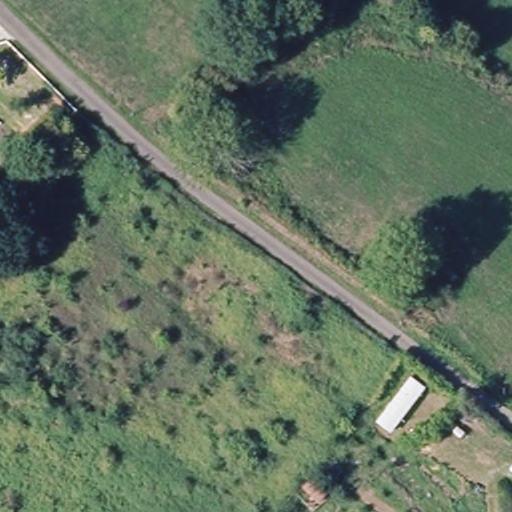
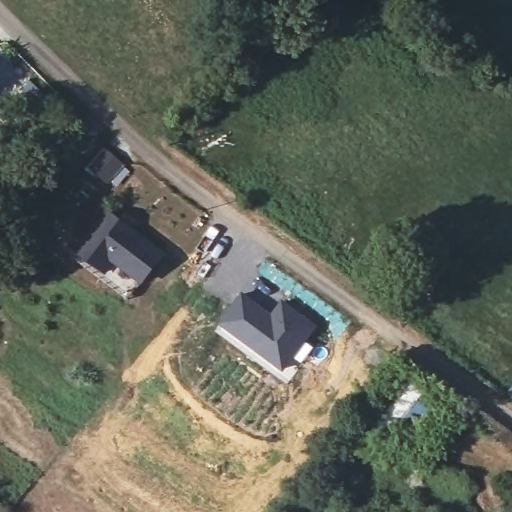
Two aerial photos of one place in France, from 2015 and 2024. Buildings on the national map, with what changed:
new [(100,269),(76,250),(107,210),(162,253),(140,282),(112,260),(104,272),(100,269)]
new [(242,290),(246,292),(253,285),(278,301),(281,298),(318,325),(292,369),(290,367),(283,374),(217,324),(242,290)]

